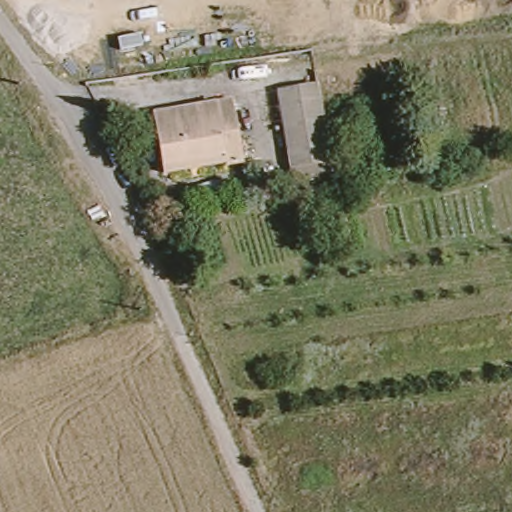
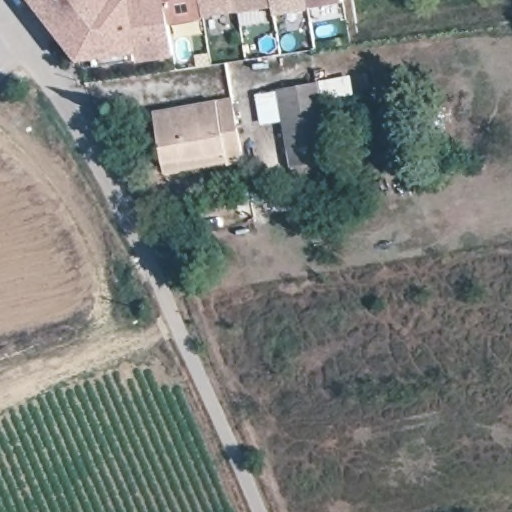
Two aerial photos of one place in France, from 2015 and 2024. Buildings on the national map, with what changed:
new [(312,9),(312,11),(275,16),(275,9),(238,16),(237,8),(205,12),(205,18),(170,22),(176,55),(138,60),(88,67),(81,61),(31,0),(342,0),(342,2),(312,9)]
unchanged [(317,84),(332,172),(292,178),(276,91),(317,84)]
unchanged [(232,103),(243,167),(227,170),(227,167),(162,179),(152,117),(232,103)]

